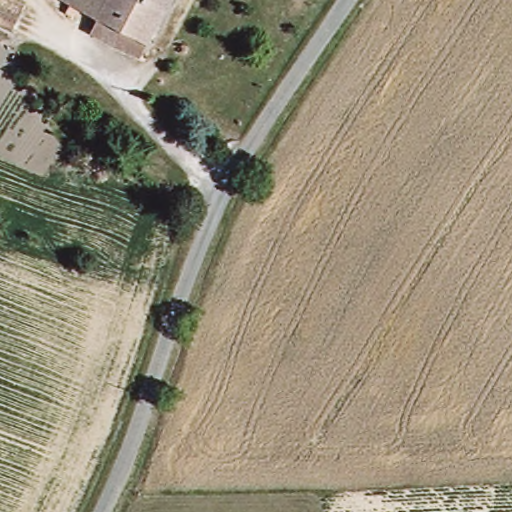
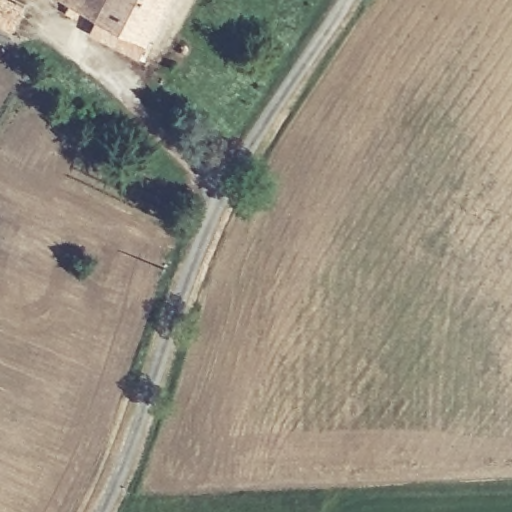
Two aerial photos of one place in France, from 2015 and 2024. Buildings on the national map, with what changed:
unchanged [(0,27),(0,0),(14,0),(20,3),(8,31),(0,27)]
unchanged [(64,2),(59,0),(164,0),(141,44),(75,9),(70,19),(58,13),(64,2)]
unchanged [(70,19),(75,9),(141,44),(134,60),(66,26),(70,19)]

